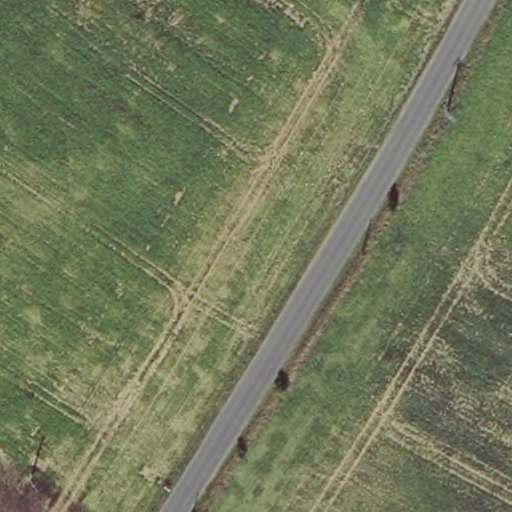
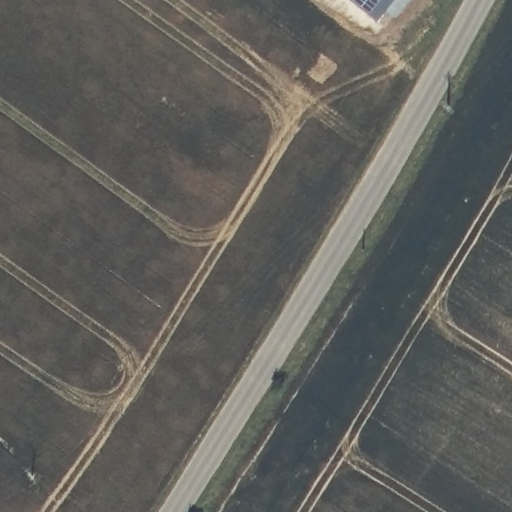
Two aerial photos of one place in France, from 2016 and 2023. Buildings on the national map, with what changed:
new [(381,29),(345,0),(402,0),(381,29)]

